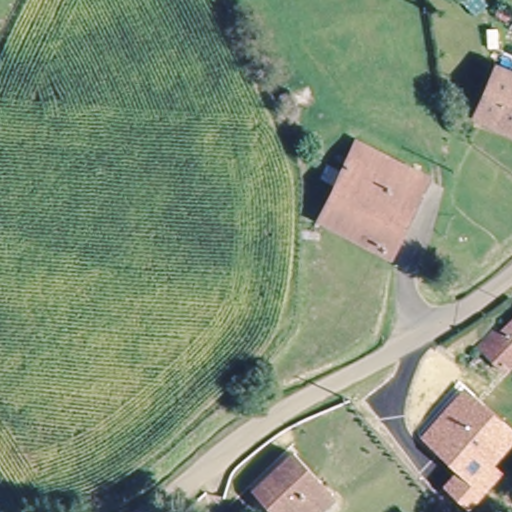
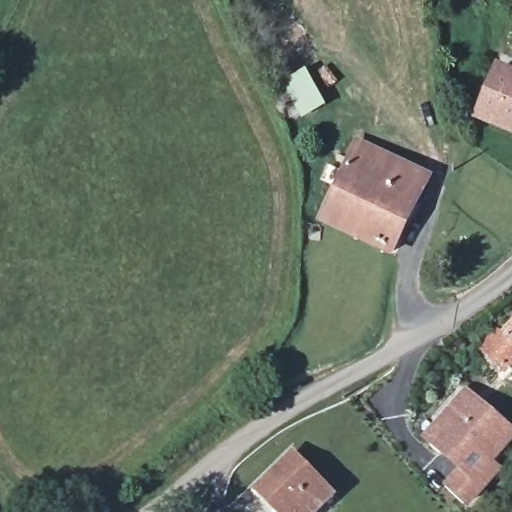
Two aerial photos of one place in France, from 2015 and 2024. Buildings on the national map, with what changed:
unchanged [(474,122),(508,59),(512,61),(512,144),(474,122)]
new [(279,94),(286,91),(281,80),(306,68),(324,106),(292,121),(279,94)]
unchanged [(350,147),(426,182),(390,254),(314,220),(350,147)]
unchanged [(497,377),(470,354),(490,333),(497,339),(512,325),(512,362),(497,377)]
unchanged [(512,431),(512,445),(495,464),(504,472),(469,509),(443,484),(454,471),(421,437),(465,386),(512,431)]
unchanged [(309,512),(271,512),(254,494),(293,461),(326,495),(309,512)]

